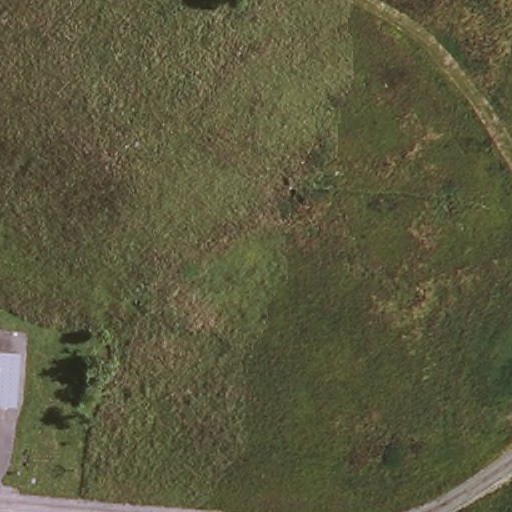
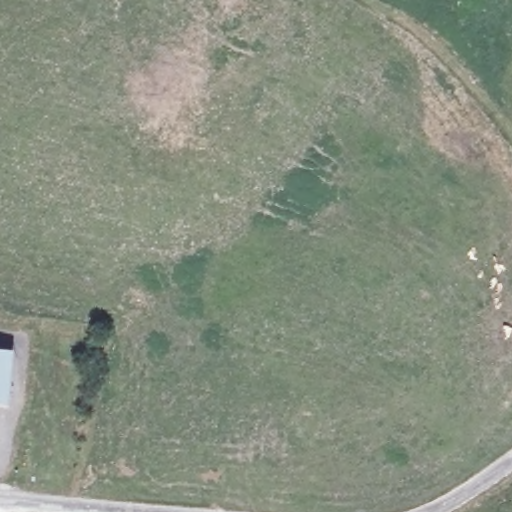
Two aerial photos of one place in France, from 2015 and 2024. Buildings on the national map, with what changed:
unchanged [(14,400),(0,398),(0,357),(13,358),(14,400)]

